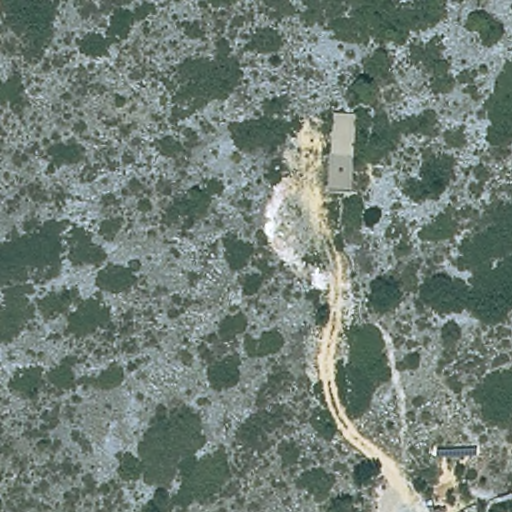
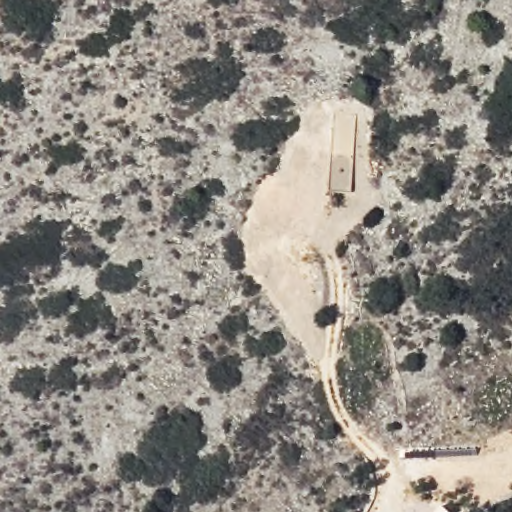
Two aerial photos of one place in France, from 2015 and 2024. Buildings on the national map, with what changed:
unchanged [(333,112),(355,114),(352,190),(328,186),(333,112)]

